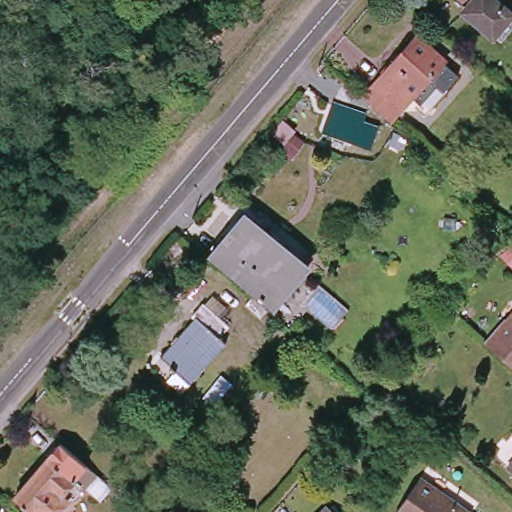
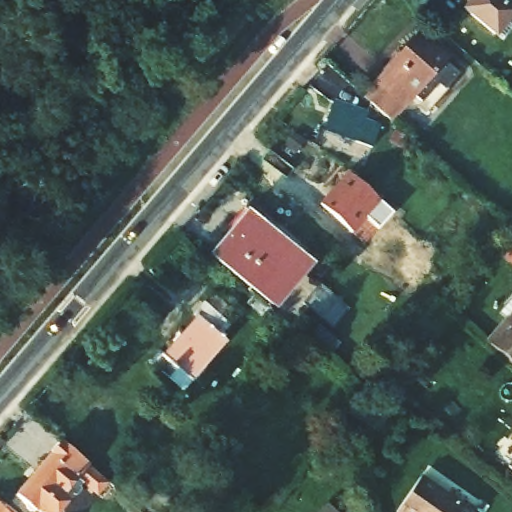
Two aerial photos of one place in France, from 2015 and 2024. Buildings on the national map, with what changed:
unchanged [(464,7),(470,1),(468,0),(495,0),(511,14),(493,33),(464,7)]
unchanged [(412,31),(440,55),(428,68),(435,74),(415,98),(407,92),(383,118),(356,94),(412,31)]
unchanged [(350,132),(320,122),(326,102),(356,112),(350,132)]
new [(392,213),(377,228),(365,217),(352,232),(320,203),(348,172),(392,213)]
unchanged [(253,283),(213,248),(248,208),(288,243),(253,283)]
unchanged [(308,261),(272,300),(253,283),(288,243),(308,261)]
unchanged [(270,303),(262,311),(247,298),(255,289),(270,303)]
unchanged [(236,330),(228,339),(183,388),(168,375),(175,366),(160,352),(195,315),(191,311),(202,299),(203,300),(211,292),(227,306),(220,315),(225,320),(236,330)]
unchanged [(505,316),(512,309),(512,363),(482,337),(502,314),(505,316)]
unchanged [(512,426),(512,429),(510,427),(512,426)]
unchanged [(110,478),(104,484),(92,473),(85,480),(81,476),(49,512),(48,512),(35,501),(31,506),(13,490),(61,435),(110,478)]
unchanged [(512,455),(512,468),(505,462),(512,455)]
unchanged [(465,512),(395,512),(393,510),(415,477),(466,510),(465,512)]
unchanged [(337,512),(313,512),(325,500),(337,512)]

